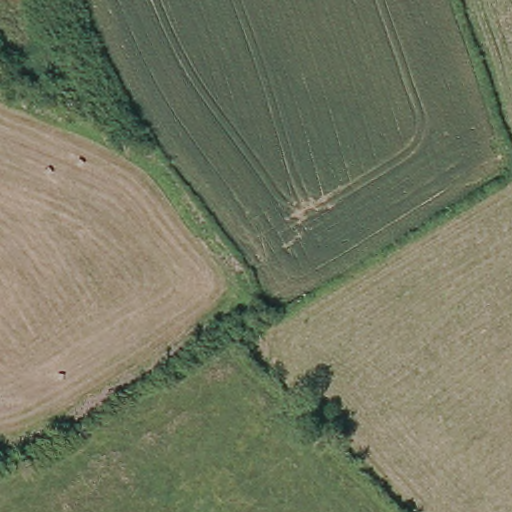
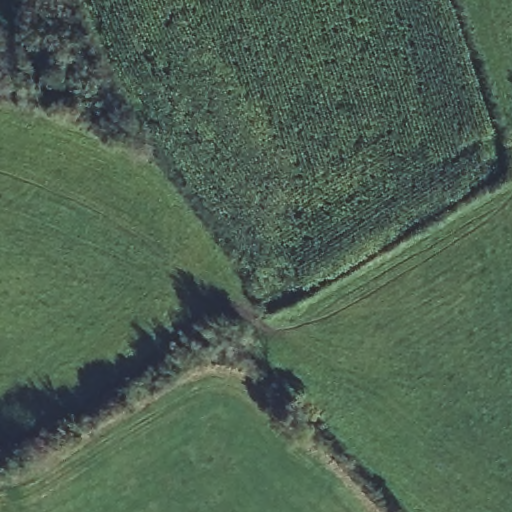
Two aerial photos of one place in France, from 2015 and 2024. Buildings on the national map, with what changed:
[]

